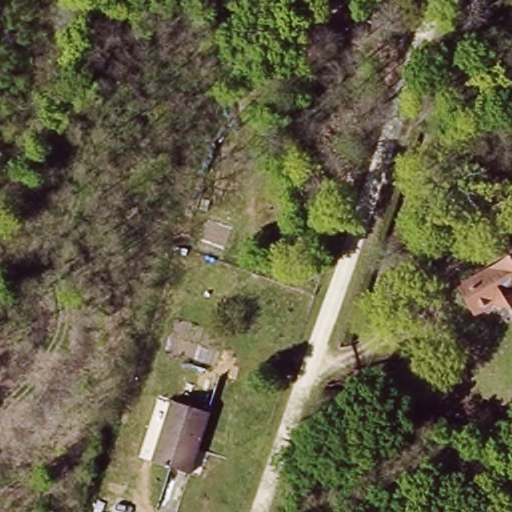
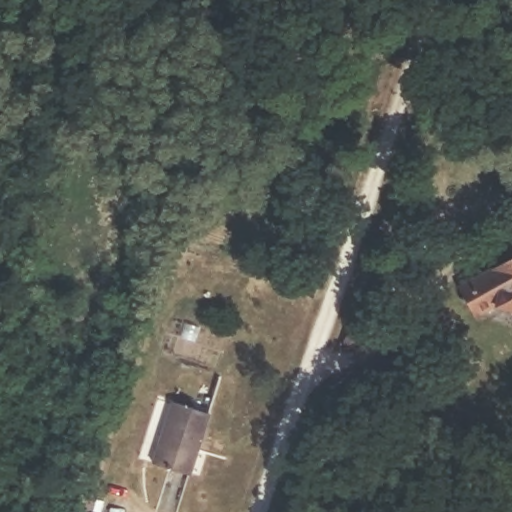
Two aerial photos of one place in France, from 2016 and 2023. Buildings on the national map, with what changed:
unchanged [(512,252),(512,295),(510,291),(476,311),(460,283),(512,252)]
unchanged [(196,472),(156,461),(173,399),(213,411),(196,472)]

